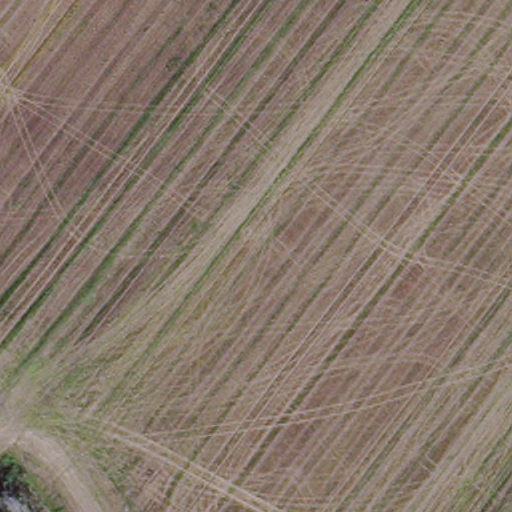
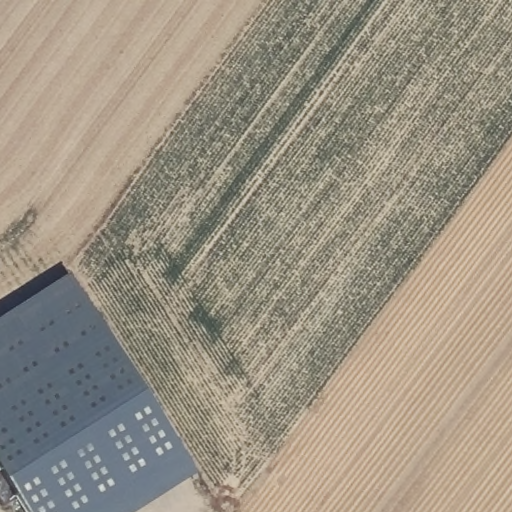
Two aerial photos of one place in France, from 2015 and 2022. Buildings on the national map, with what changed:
new [(139,512),(25,512),(0,473),(0,321),(70,276),(198,475),(139,512)]

